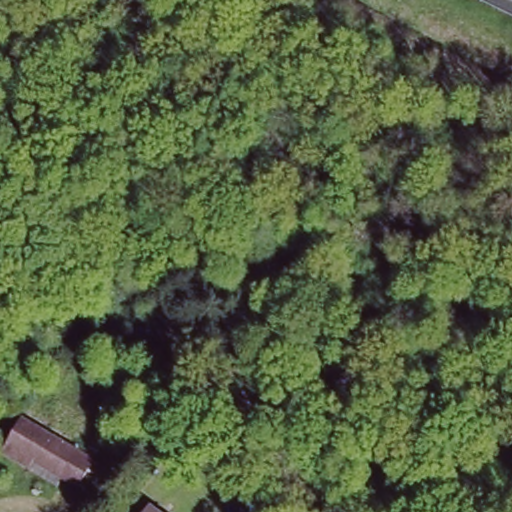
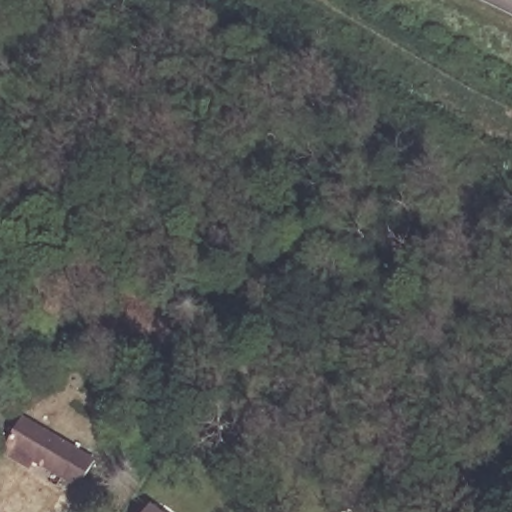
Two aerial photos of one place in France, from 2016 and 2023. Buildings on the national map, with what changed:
unchanged [(0,457),(0,456),(4,447),(20,417),(76,446),(94,456),(78,484),(60,475),(31,460),(25,471),(0,457)]
unchanged [(140,512),(141,510),(146,512),(140,512)]

